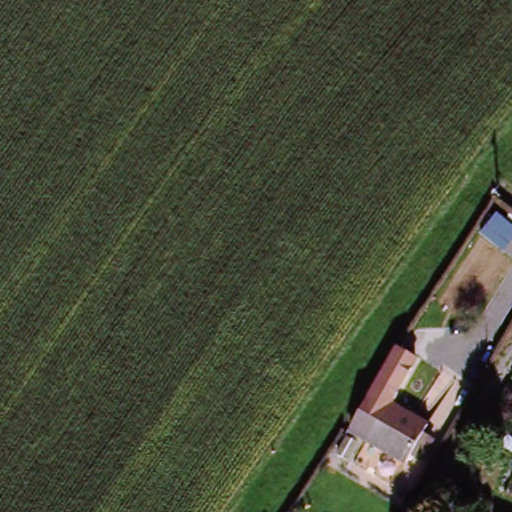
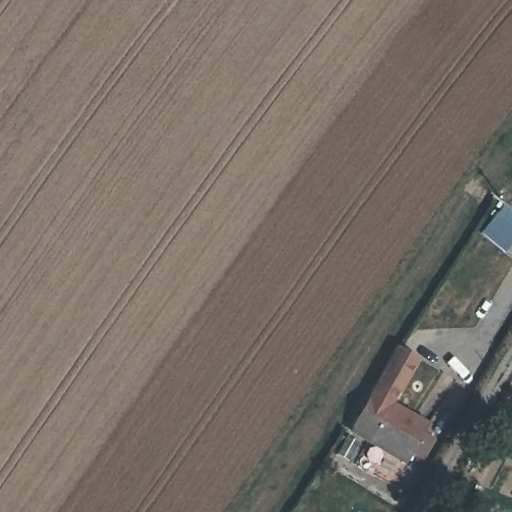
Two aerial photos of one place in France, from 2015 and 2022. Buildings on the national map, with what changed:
unchanged [(512,244),(510,247),(485,228),(500,212),(512,222),(512,244)]
unchanged [(428,428),(421,440),(429,445),(417,463),(409,458),(405,467),(347,432),(370,394),(428,428)]

